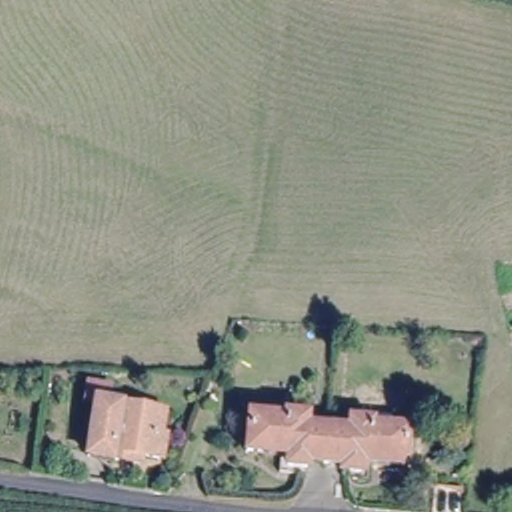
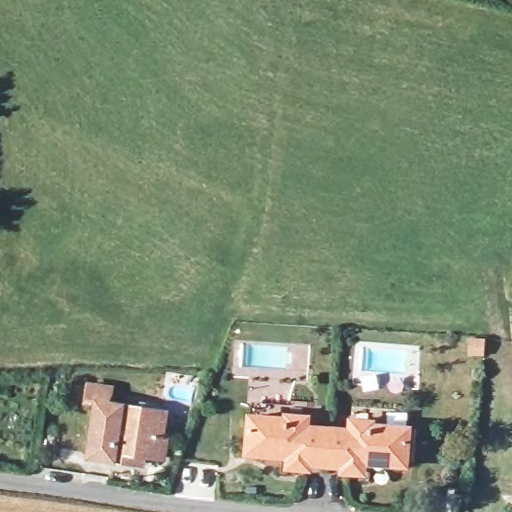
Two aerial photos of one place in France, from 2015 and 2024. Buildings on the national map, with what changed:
unchanged [(161,435),(166,436),(162,460),(145,457),(143,467),(88,457),(96,402),(164,412),(161,435)]
unchanged [(305,462),(304,468),(284,467),(285,455),(245,451),(247,416),(284,419),(284,415),(303,417),(303,427),(325,429),(322,463),(305,462)]
unchanged [(325,429),(347,431),(348,421),(368,422),(368,426),(404,428),(401,464),(359,461),(358,472),(339,471),(340,465),(322,463),(325,429)]

